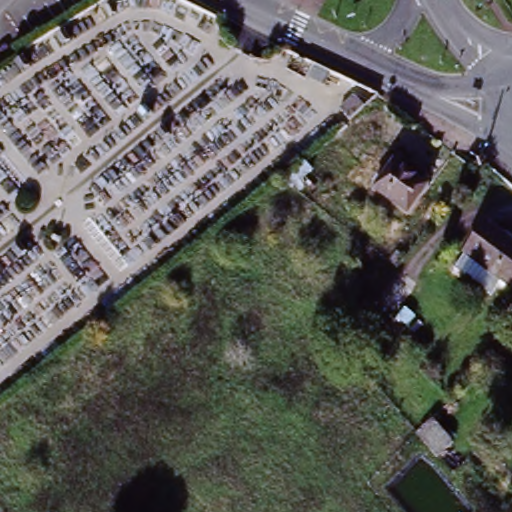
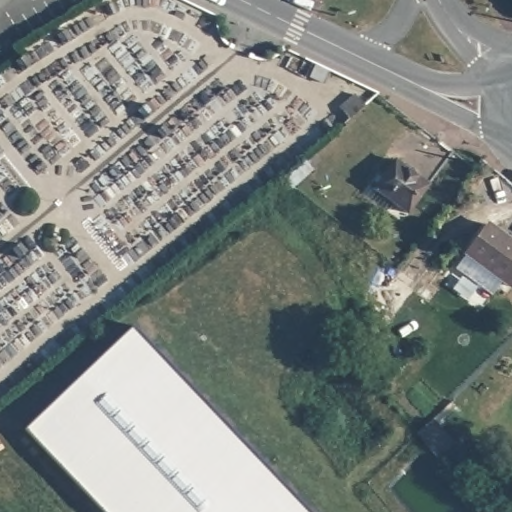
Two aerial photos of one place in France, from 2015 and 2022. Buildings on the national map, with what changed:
unchanged [(341,107),(356,95),(366,107),(350,120),(341,107)]
unchanged [(411,212),(376,189),(396,160),(430,183),(411,212)]
unchanged [(314,169),(299,187),(291,182),(306,162),(314,169)]
unchanged [(455,264),(466,249),(487,220),(512,238),(512,279),(511,282),(502,276),(491,291),(455,264)]
new [(305,512),(100,512),(27,433),(137,331),(305,512)]

